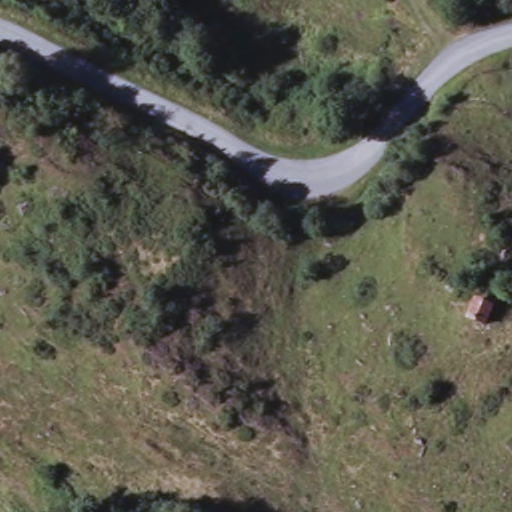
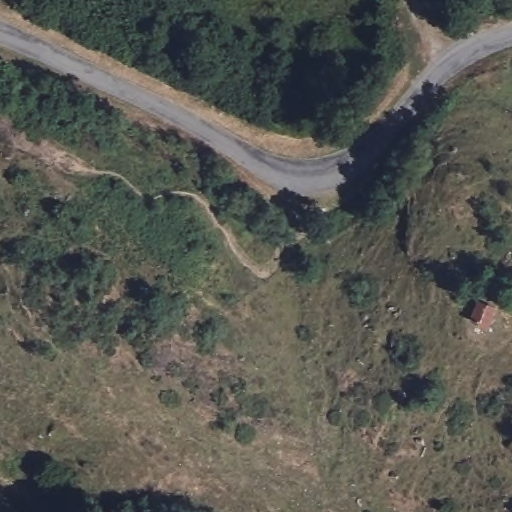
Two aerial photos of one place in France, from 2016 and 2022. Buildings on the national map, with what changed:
unchanged [(494,318),(489,334),(457,325),(466,292),(499,301),(494,318)]

